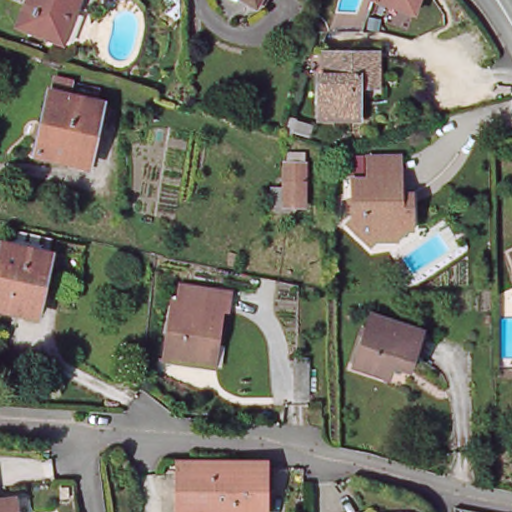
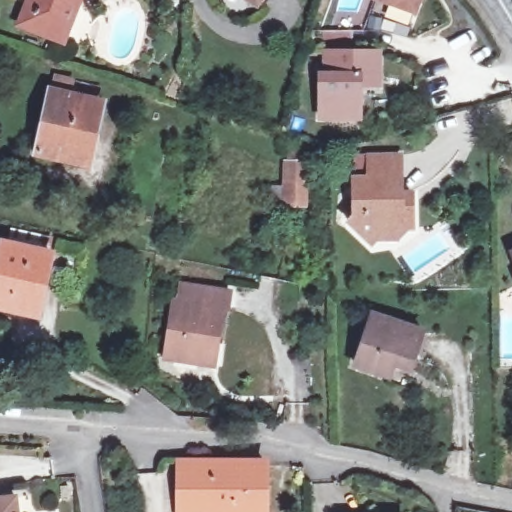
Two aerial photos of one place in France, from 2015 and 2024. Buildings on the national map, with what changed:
unchanged [(57,37),(21,23),(30,0),(80,0),(79,2),(65,40),(57,37)]
unchanged [(265,7),(259,3),(254,0),(269,0),(265,7)]
unchanged [(417,10),(388,0),(420,0),(417,10)]
unchanged [(323,116),(324,73),(328,73),(328,50),(381,51),(381,75),(381,84),(363,84),(363,117),(323,116)]
unchanged [(72,159),(38,151),(52,90),(102,101),(93,144),(88,163),(72,159)]
unchanged [(374,245),(351,222),(354,218),(354,176),(371,176),(371,171),(371,155),(403,156),(402,171),(403,193),(413,192),(413,205),(413,228),(399,228),(399,241),(377,241),(374,245)]
unchanged [(286,202),(286,162),(307,163),(306,202),(286,202)]
unchanged [(0,307),(0,264),(0,265),(5,242),(51,253),(46,278),(38,316),(30,314),(0,307)]
unchanged [(204,364),(164,357),(173,299),(178,300),(181,284),(231,291),(228,308),(223,308),(217,343),(213,365),(204,364)]
unchanged [(394,364),(389,377),(356,366),(373,316),(423,332),(413,362),(410,370),(394,364)]
unchanged [(296,399),(296,357),(312,357),(313,399),(296,399)]
unchanged [(264,459),(264,512),(182,512),(182,456),(264,459)]
unchanged [(19,512),(0,512),(0,502),(18,501),(19,512)]

